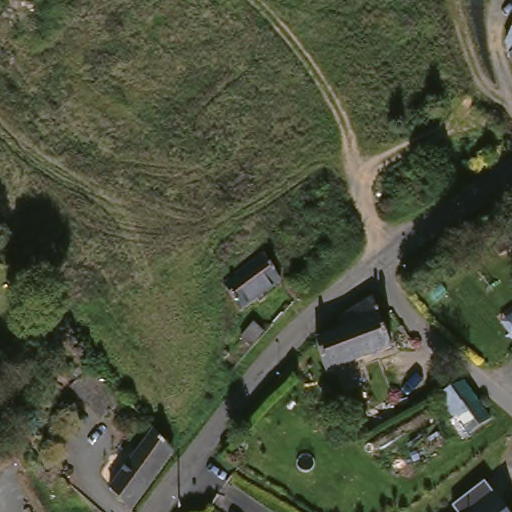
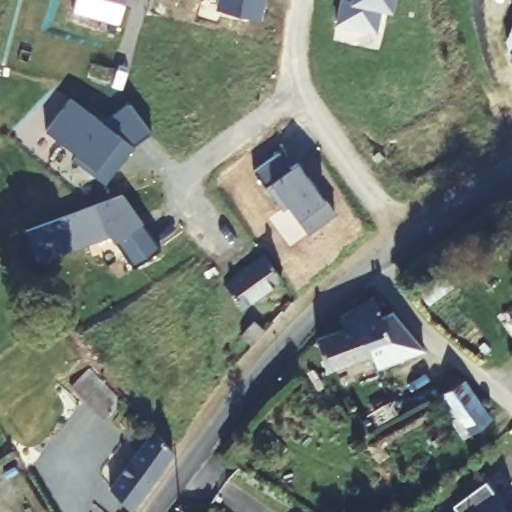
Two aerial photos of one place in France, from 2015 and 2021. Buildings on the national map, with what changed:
new [(336,25),(341,0),(344,0),(352,2),(352,0),(394,0),(391,13),(380,10),(376,33),(336,25)]
unchanged [(510,47),(507,36),(512,25),(512,53),(510,47)]
new [(72,160),(77,155),(45,131),(70,99),(100,122),(129,104),(151,134),(133,147),(105,185),(72,160)]
new [(116,243),(115,245),(110,237),(38,264),(25,232),(122,195),(142,226),(159,251),(134,269),(116,243)]
unchanged [(243,311),(224,287),(264,254),(285,277),(243,311)]
unchanged [(385,321),(390,349),(332,371),(325,342),(352,330),(343,317),(375,297),(385,321)]
unchanged [(242,339),(257,325),(271,311),(282,320),(269,332),(252,350),(242,339)]
unchanged [(121,410),(101,427),(68,390),(87,372),(121,410)]
unchanged [(472,433),(448,399),(466,388),(491,422),(472,433)]
unchanged [(135,506),(114,490),(158,430),(177,448),(135,506)]
unchanged [(451,504),(485,480),(509,512),(457,512),(451,504)]

